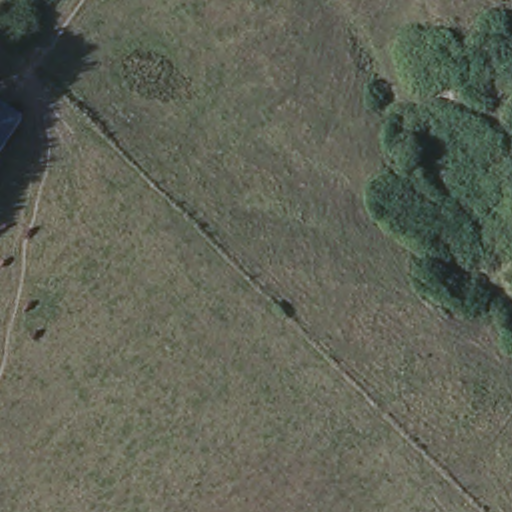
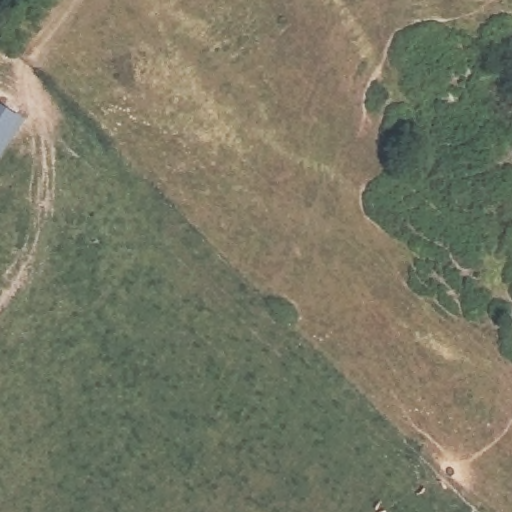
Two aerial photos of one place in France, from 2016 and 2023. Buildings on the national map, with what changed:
unchanged [(23,121),(0,156),(0,107),(23,121)]

